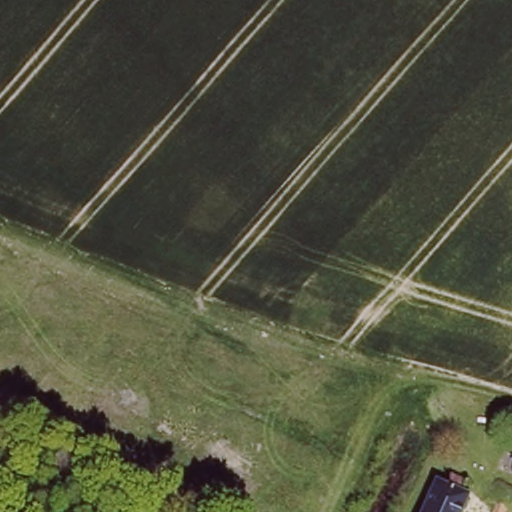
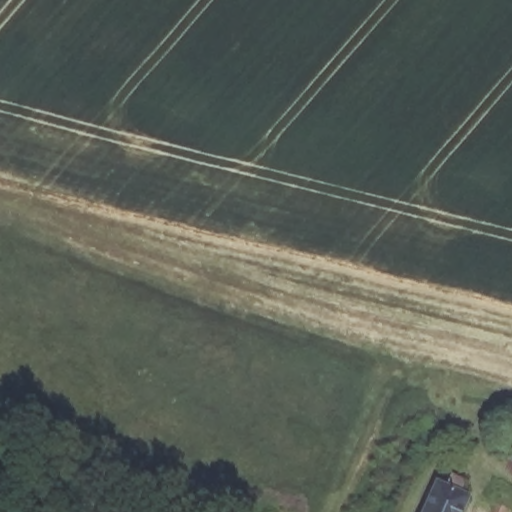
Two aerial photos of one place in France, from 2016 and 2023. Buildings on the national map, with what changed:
unchanged [(499,451),(512,455),(512,477),(492,471),(499,451)]
unchanged [(457,512),(422,512),(437,477),(448,481),(452,469),(465,473),(461,486),(467,487),(457,512)]

